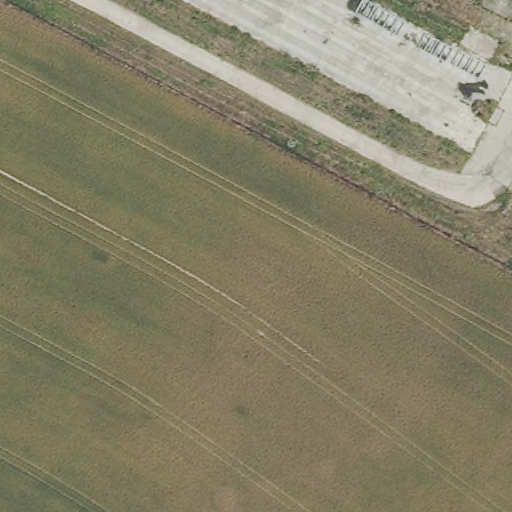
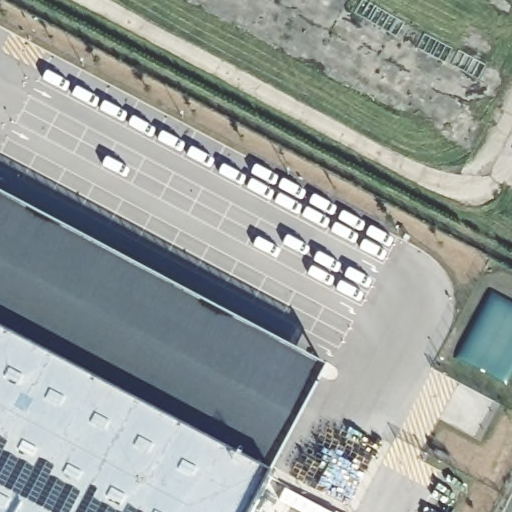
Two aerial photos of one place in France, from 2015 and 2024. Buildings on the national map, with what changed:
demolished [(151,0),(279,0),(241,48),(151,0)]
demolished [(342,0),(480,75),(422,146),(241,48),(279,0),(342,0)]
demolished [(478,0),(512,0),(512,18),(478,0)]
demolished [(505,89),(462,167),(422,146),(480,75),(505,89)]
new [(249,512),(0,512),(0,188),(329,364),(249,512)]

